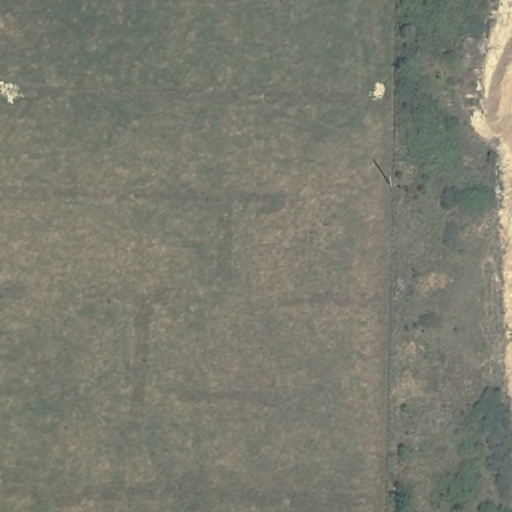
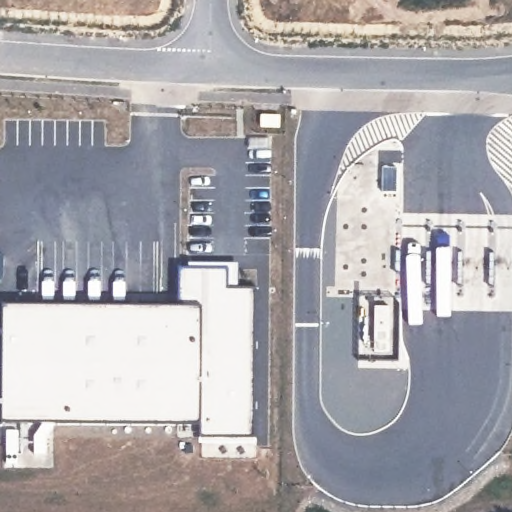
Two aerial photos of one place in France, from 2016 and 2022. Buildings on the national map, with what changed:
new [(200,441),(199,426),(57,426),(50,434),(49,455),(34,455),(33,437),(42,425),(2,423),(3,305),(178,307),(179,268),(187,268),(187,264),(238,264),(239,288),(259,289),(257,444),(200,441)]

